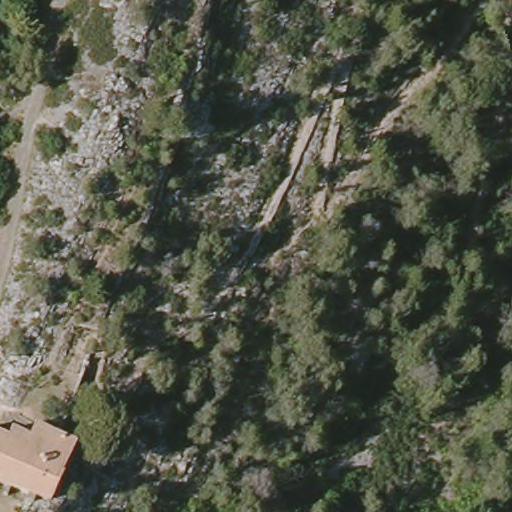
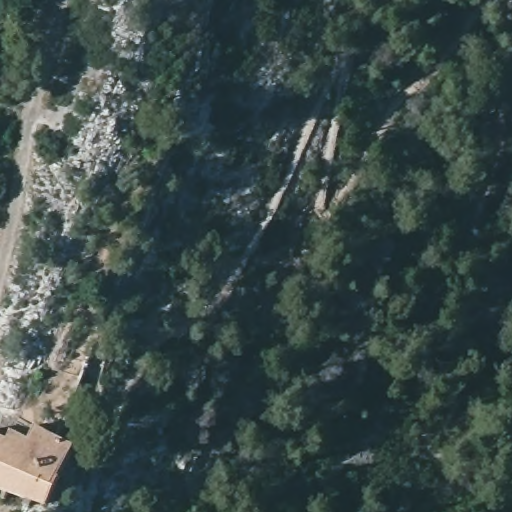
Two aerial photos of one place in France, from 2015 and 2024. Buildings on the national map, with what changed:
unchanged [(26,421),(40,428),(76,446),(64,475),(67,476),(52,508),(32,499),(17,493),(12,504),(7,502),(11,491),(0,487),(0,438),(11,442),(21,419),(26,421)]

